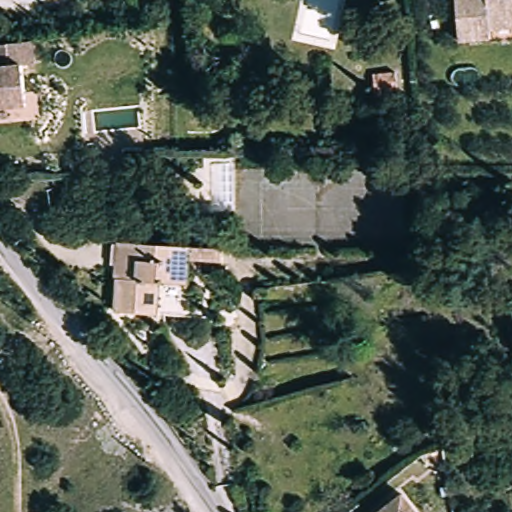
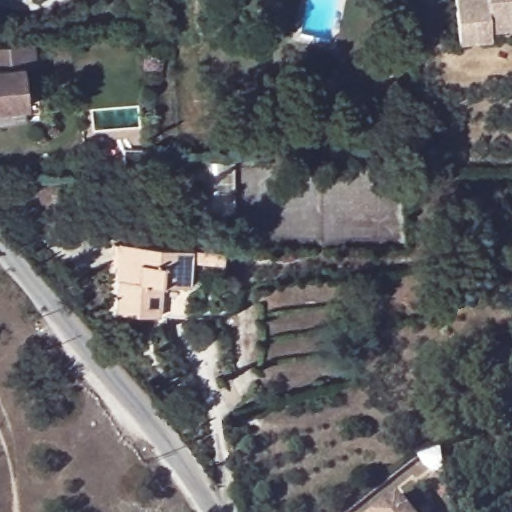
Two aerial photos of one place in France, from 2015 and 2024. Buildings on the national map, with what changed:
unchanged [(488,26),(489,35),(459,37),(456,0),(512,0),(512,24),(488,26)]
unchanged [(0,37),(31,35),(34,63),(23,64),(25,100),(0,102),(0,37)]
unchanged [(389,75),(391,97),(369,98),(369,76),(389,75)]
unchanged [(221,274),(188,273),(185,320),(115,316),(118,269),(119,247),(131,247),(221,253),(221,274)]
unchanged [(392,500),(401,493),(415,512),(371,512),(389,498),(392,500)]

